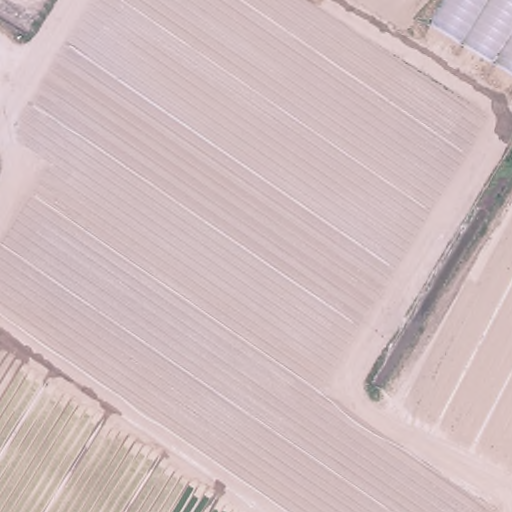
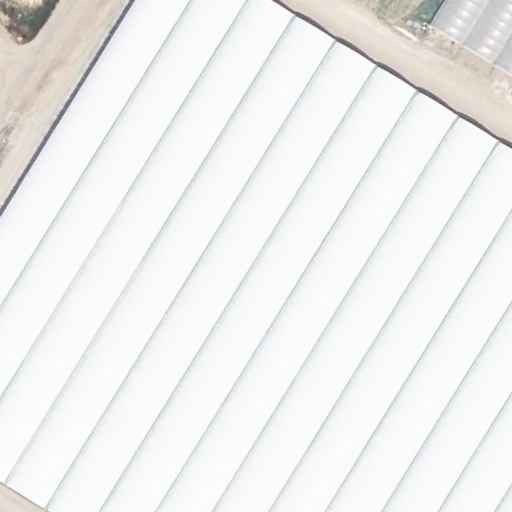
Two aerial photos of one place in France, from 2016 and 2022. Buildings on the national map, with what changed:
new [(139,0),(269,0),(512,150),(512,512),(50,512),(0,481),(0,223),(139,0)]
unchanged [(512,0),(512,84),(431,37),(454,0),(512,0)]

